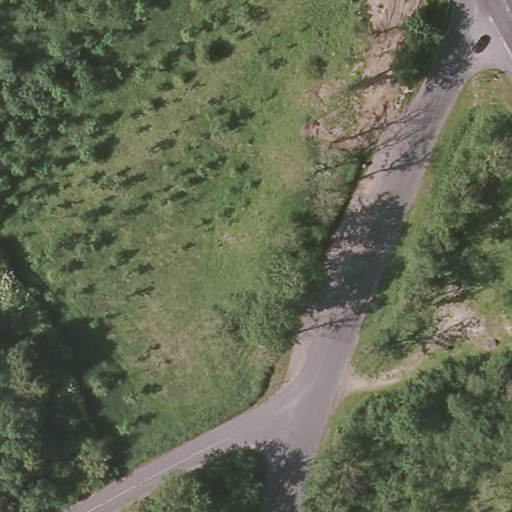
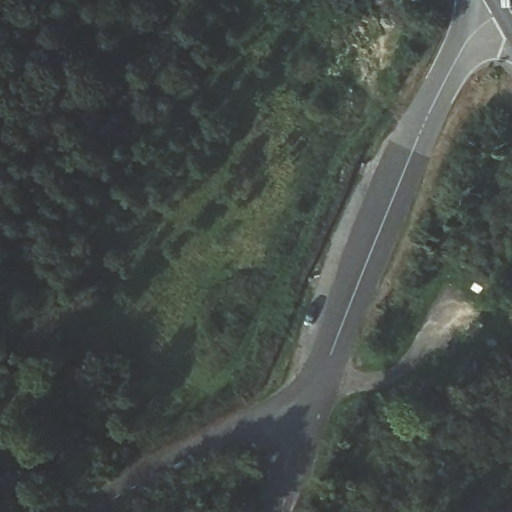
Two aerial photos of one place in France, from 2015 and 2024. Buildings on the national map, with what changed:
[]

